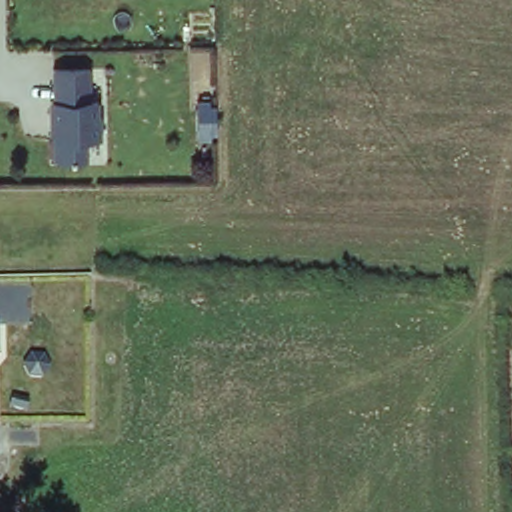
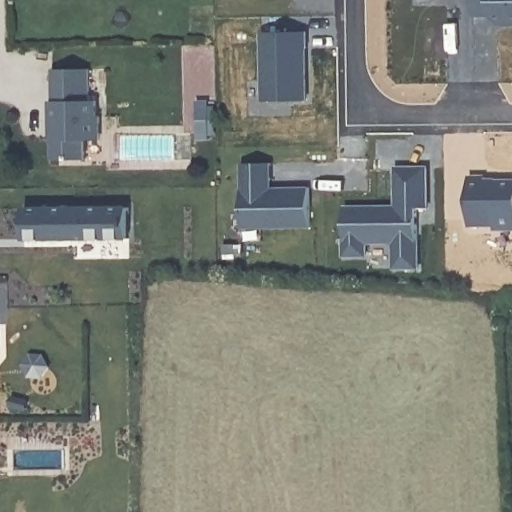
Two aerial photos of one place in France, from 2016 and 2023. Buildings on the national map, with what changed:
new [(490,13),(472,13),(472,0),(512,0),(512,22),(500,22),(490,13)]
new [(305,32),(305,49),(303,49),(305,101),(262,102),(260,34),(305,32)]
unchanged [(88,69),(89,101),(92,101),(93,116),(95,115),(95,141),(80,141),(80,160),(53,161),(52,129),(49,129),(48,102),(53,102),(52,71),(88,69)]
new [(240,165),(270,164),(271,182),(267,182),(267,190),(309,189),(310,229),(242,232),(240,165)]
new [(397,209),(397,171),(428,171),(428,211),(418,211),(419,270),(397,271),(396,245),(366,246),(367,258),(345,258),(344,211),(397,209)]
new [(485,178),(485,184),(512,183),(512,232),(495,232),(495,227),(470,229),(469,179),(485,178)]
new [(22,210),(128,209),(129,240),(23,241),(22,210)]

